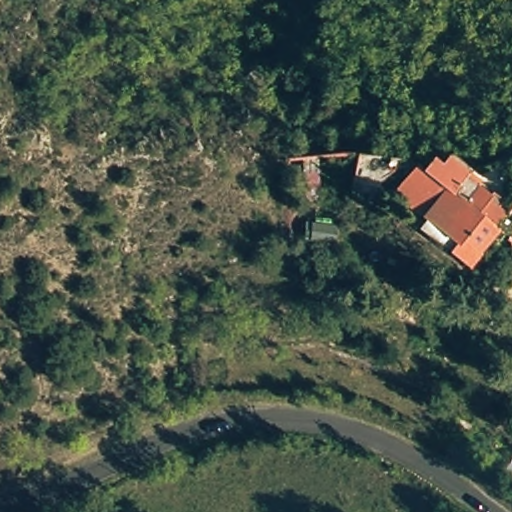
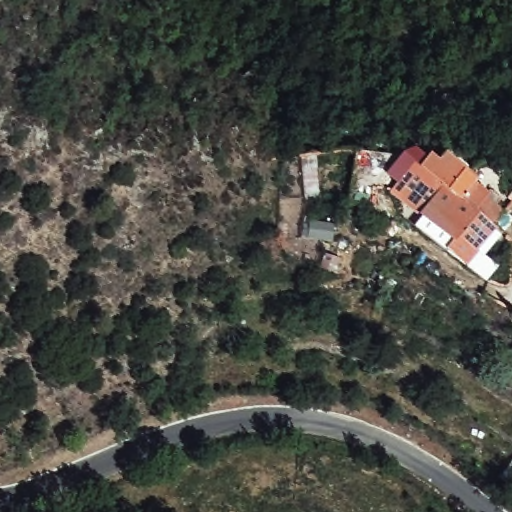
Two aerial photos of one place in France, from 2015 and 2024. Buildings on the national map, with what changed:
unchanged [(419,164),(430,152),(437,159),(445,152),(492,194),(485,209),(502,224),(467,264),(415,222),(423,210),(392,184),(413,161),(419,164)]

